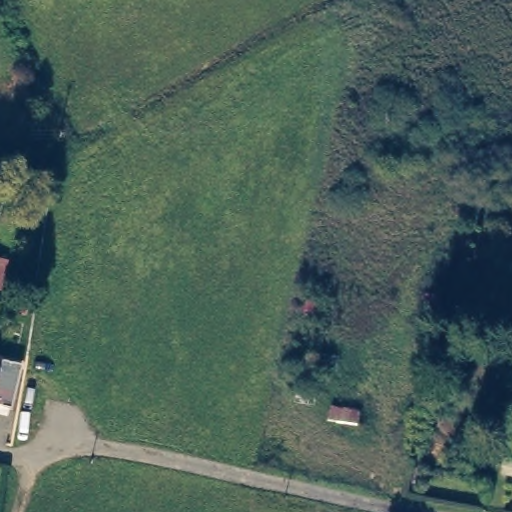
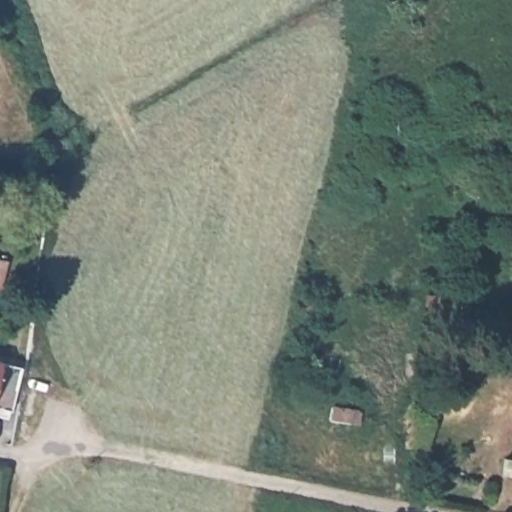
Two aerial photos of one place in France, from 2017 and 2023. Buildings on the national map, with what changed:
unchanged [(4,293),(0,292),(0,258),(11,261),(4,293)]
unchanged [(0,401),(0,355),(21,360),(11,404),(0,401)]
unchanged [(366,397),(364,422),(333,420),(335,395),(366,397)]
unchanged [(491,451),(486,473),(444,464),(450,442),(491,451)]
unchanged [(512,454),(512,475),(500,473),(506,454),(512,454)]

